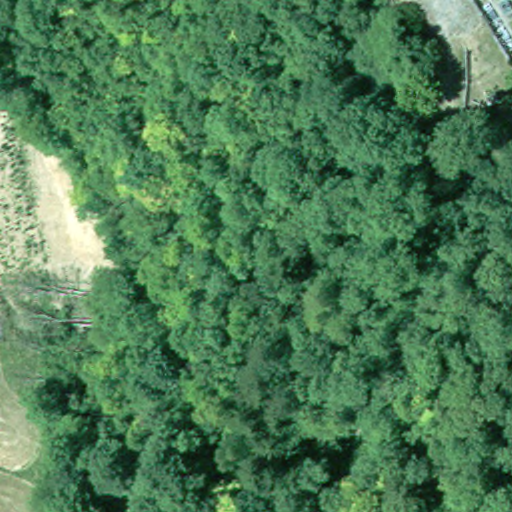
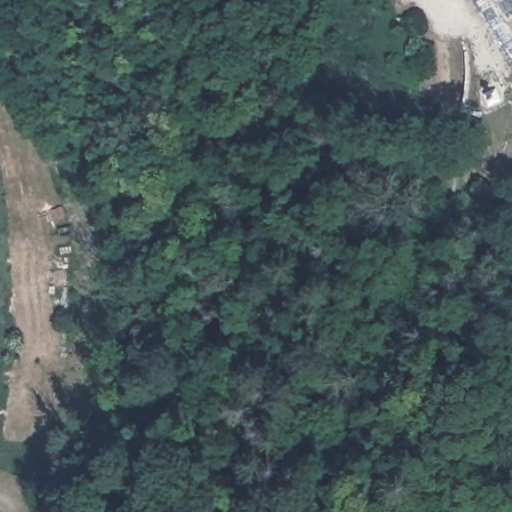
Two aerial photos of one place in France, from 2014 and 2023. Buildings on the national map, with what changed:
unchanged [(493,87),(483,92),(479,84),(490,79),(493,87)]

